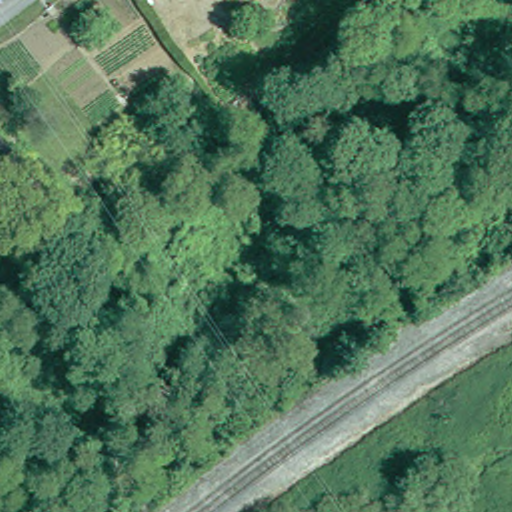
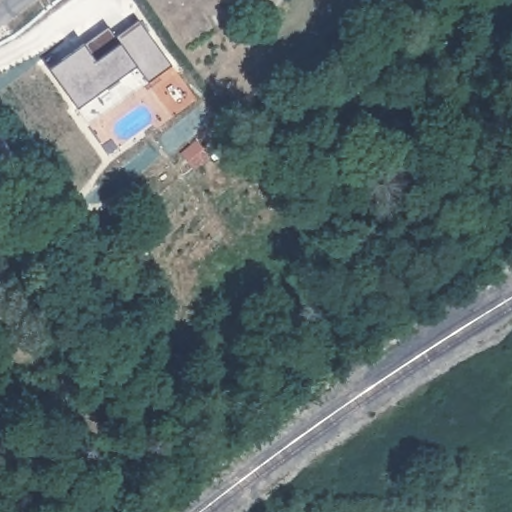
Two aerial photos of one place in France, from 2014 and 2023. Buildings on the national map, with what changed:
new [(108,28),(111,32),(115,38),(138,20),(172,66),(148,83),(136,68),(78,111),(49,72),(83,46),(108,28)]
new [(136,68),(148,83),(90,127),(78,111),(136,68)]
new [(0,140),(4,146),(15,159),(0,170),(0,140)]
demolished [(193,169),(182,156),(196,145),(207,157),(193,169)]

